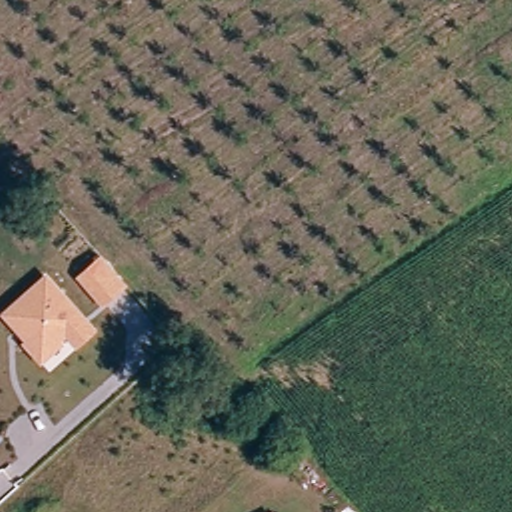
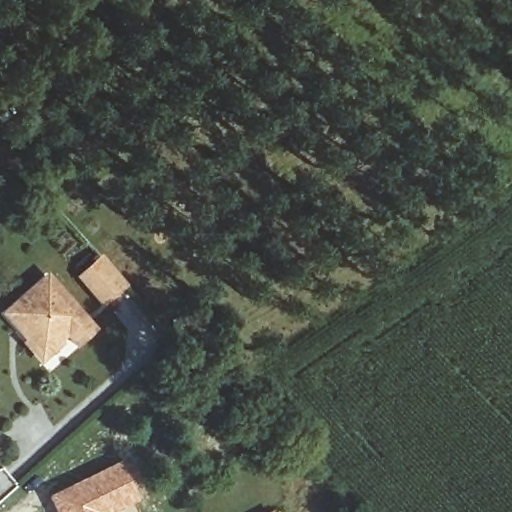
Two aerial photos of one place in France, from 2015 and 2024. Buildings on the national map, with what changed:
unchanged [(75,278),(102,253),(129,286),(102,309),(75,278)]
unchanged [(45,279),(91,334),(73,349),(64,338),(38,359),(2,315),(45,279)]
new [(121,461),(140,503),(122,512),(53,512),(46,497),(121,461)]

